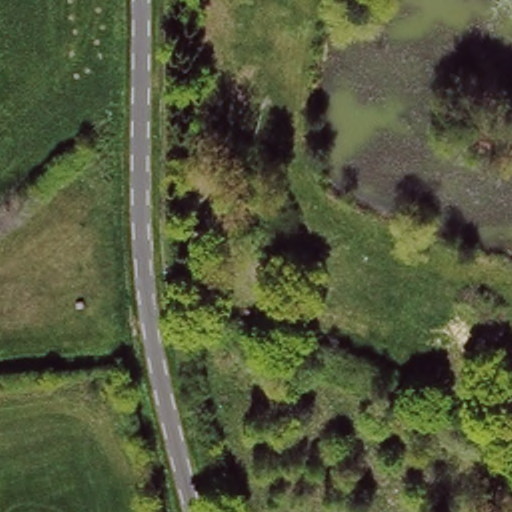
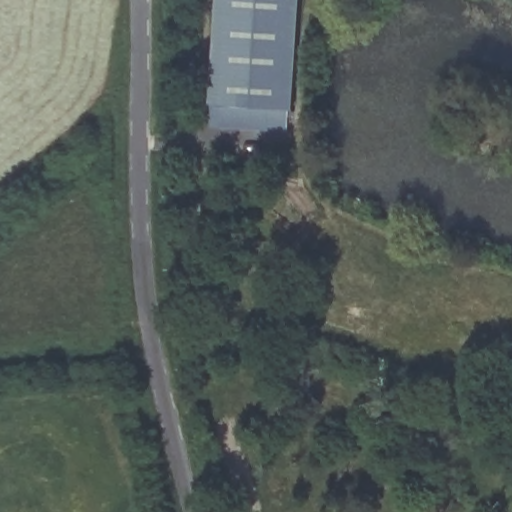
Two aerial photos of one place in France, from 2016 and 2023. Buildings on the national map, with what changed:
new [(215,0),(298,0),(290,141),(206,137),(215,0)]

